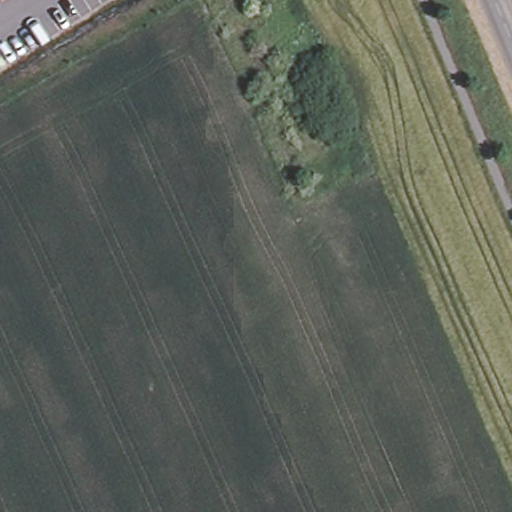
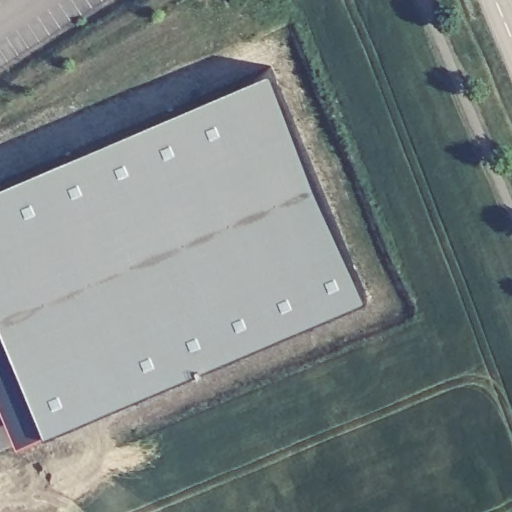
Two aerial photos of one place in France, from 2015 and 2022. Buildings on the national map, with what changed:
new [(270,81),(363,307),(43,444),(0,339),(0,194),(270,81)]

